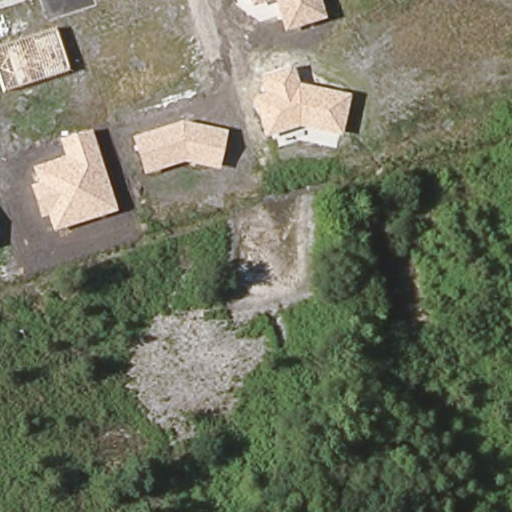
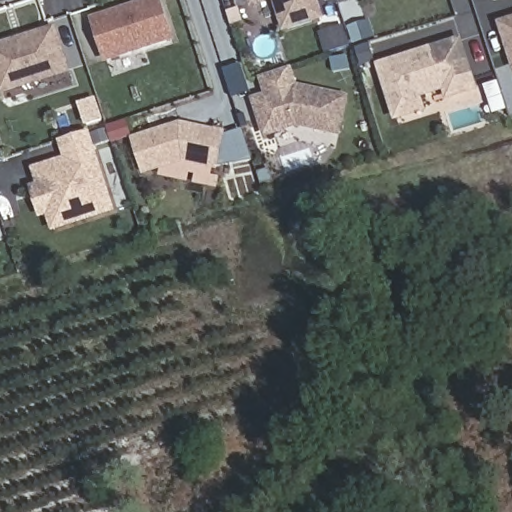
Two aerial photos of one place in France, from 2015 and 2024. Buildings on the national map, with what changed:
new [(107,63),(91,18),(143,0),(163,0),(177,39),(107,63)]
unchanged [(326,17),(284,31),(273,0),(252,7),(250,0),(320,0),(326,17)]
new [(512,18),(512,64),(498,22),(512,18)]
unchanged [(69,72),(4,91),(0,77),(0,47),(56,28),(69,72)]
new [(448,100),(445,91),(423,98),(428,111),(396,120),(377,64),(463,37),(480,90),(448,100)]
unchanged [(341,133),(300,125),(266,136),(252,99),(268,92),(262,77),(295,67),(300,83),(349,94),(341,133)]
unchanged [(218,169),(183,163),(145,174),(133,137),(181,122),(227,131),(218,169)]
unchanged [(117,211),(53,231),(47,214),(39,217),(30,187),(39,183),(34,167),(66,157),(60,140),(91,130),(117,211)]

